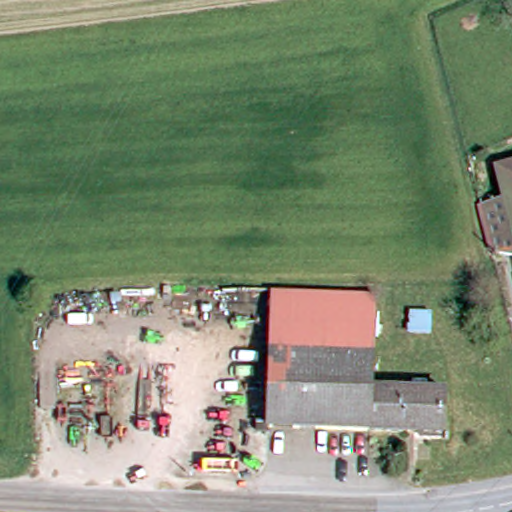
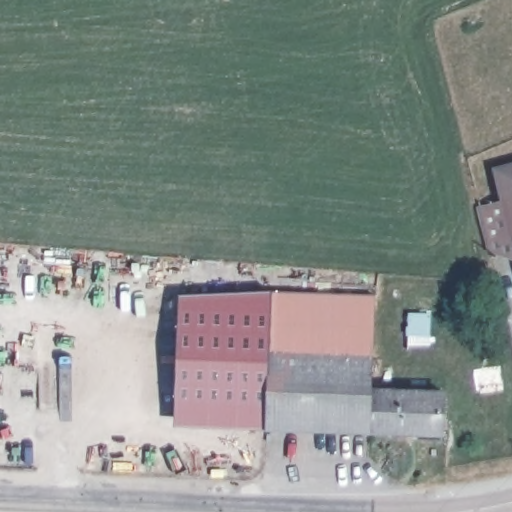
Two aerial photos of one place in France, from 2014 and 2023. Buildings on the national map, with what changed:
unchanged [(506,261),(492,257),(480,210),(505,202),(498,171),(512,168),(512,261),(506,261)]
unchanged [(269,296),(367,291),(367,299),(366,384),(365,431),(265,428),(269,301),(269,296)]
new [(269,301),(265,428),(175,425),(180,297),(269,296),(269,301)]
unchanged [(437,388),(437,432),(365,431),(366,384),(437,388)]

